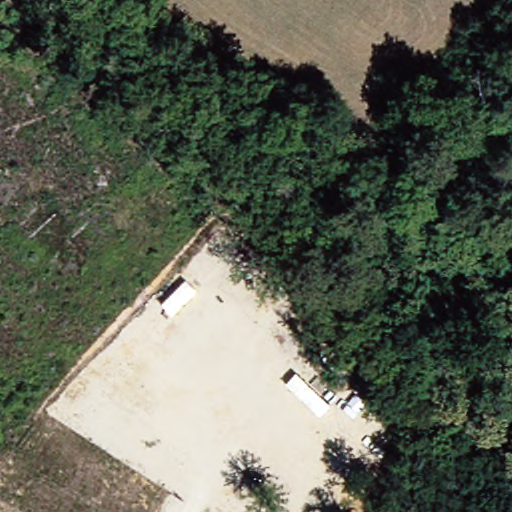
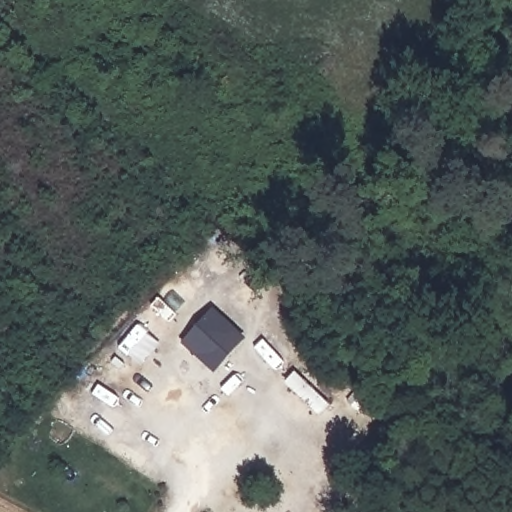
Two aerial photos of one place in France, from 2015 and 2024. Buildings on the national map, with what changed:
new [(181,343),(212,309),(246,339),(215,373),(181,343)]

